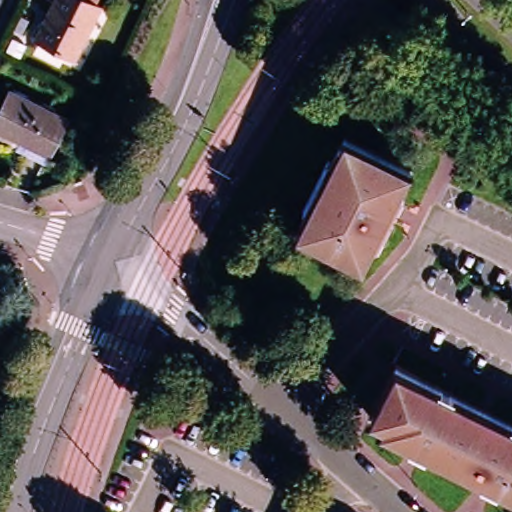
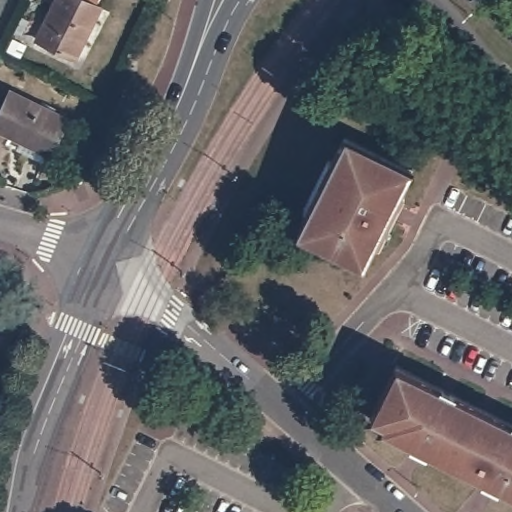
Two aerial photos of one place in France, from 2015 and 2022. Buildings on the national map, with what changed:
unchanged [(74,57),(36,39),(55,0),(86,0),(100,7),(74,57)]
unchanged [(25,142),(0,130),(0,108),(9,90),(68,119),(50,155),(46,164),(21,151),(25,142)]
unchanged [(297,234),(346,137),(412,169),(363,265),(297,234)]
unchanged [(496,480),(494,485),(479,478),(482,473),(424,444),(422,450),(407,442),(410,437),(367,417),(395,365),(512,424),(512,488),(496,480)]

